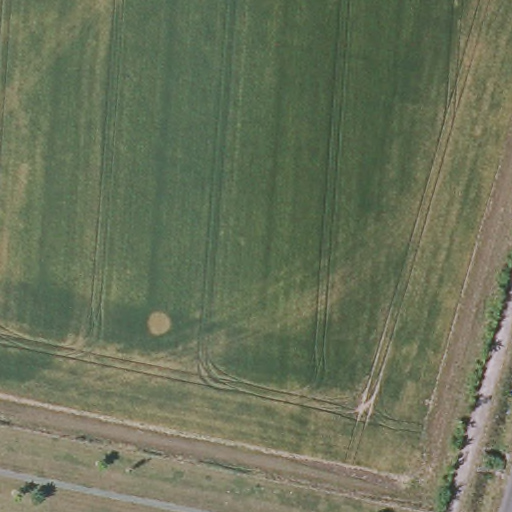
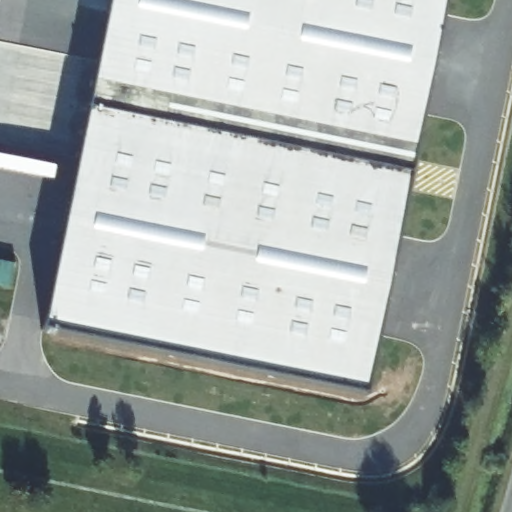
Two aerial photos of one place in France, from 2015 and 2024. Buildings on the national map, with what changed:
new [(46,331),(114,0),(447,0),(369,400),(46,331)]
new [(11,287),(0,285),(0,261),(15,263),(11,287)]

